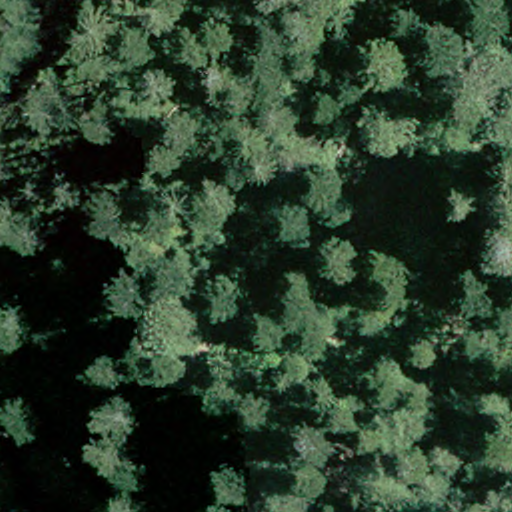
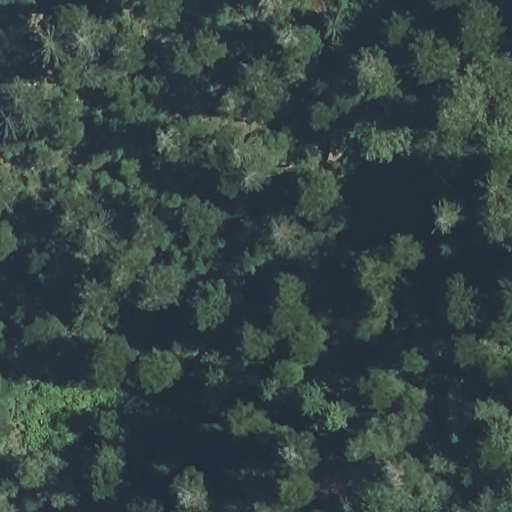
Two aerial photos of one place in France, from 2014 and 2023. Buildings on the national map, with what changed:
unchanged [(292,90),(322,106),(330,192),(267,206),(252,152),(292,90)]

